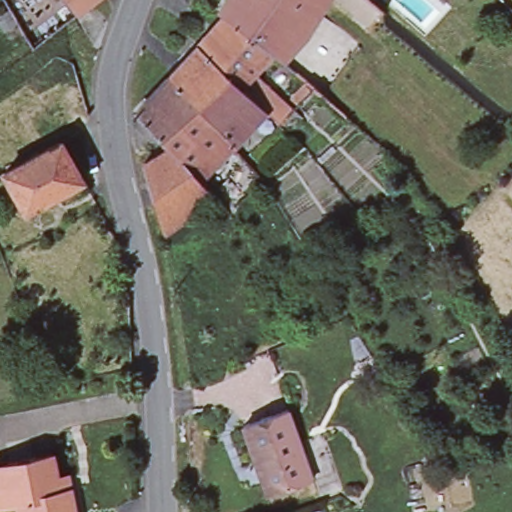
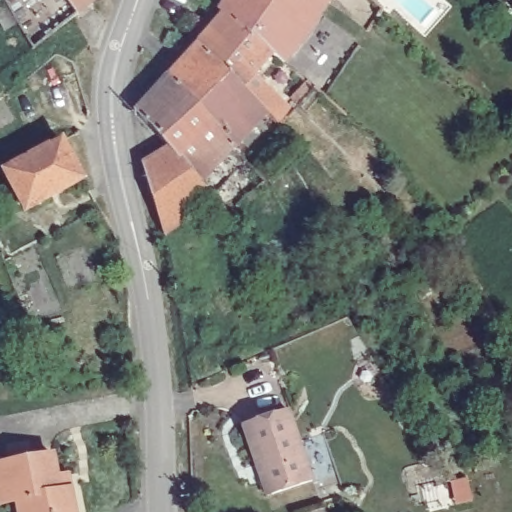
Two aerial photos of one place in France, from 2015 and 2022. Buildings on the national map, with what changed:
unchanged [(77,15),(65,0),(95,0),(77,15)]
unchanged [(320,16),(307,39),(285,65),(274,56),(225,17),(220,14),(229,0),(296,0),(320,16)]
unchanged [(328,4),(320,16),(296,0),(331,0),(328,4)]
unchanged [(225,17),(274,56),(258,74),(293,107),(277,124),(267,114),(200,46),(225,17)]
unchanged [(267,114),(236,147),(170,79),(200,46),(267,114)]
unchanged [(236,147),(234,150),(203,183),(201,185),(170,150),(138,115),(170,79),(236,147)]
unchanged [(63,142),(85,182),(28,213),(6,173),(63,142)]
unchanged [(170,150),(201,185),(203,183),(215,195),(212,197),(214,199),(166,236),(161,220),(144,165),(170,150)]
unchanged [(257,468),(244,430),(289,414),(313,485),(273,498),(268,500),(257,468)]
unchanged [(0,505),(0,466),(52,456),(56,480),(66,477),(77,476),(83,512),(18,512),(16,502),(0,505)]

